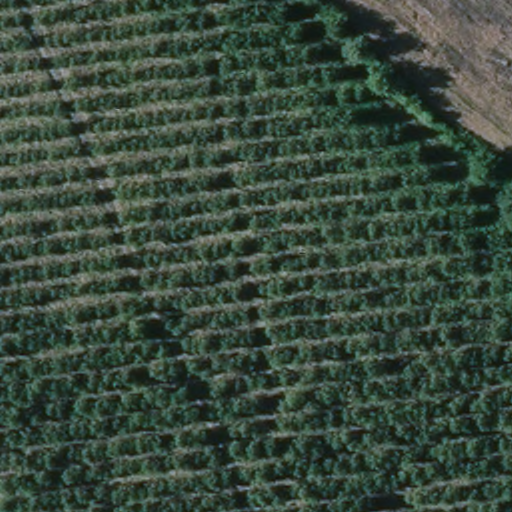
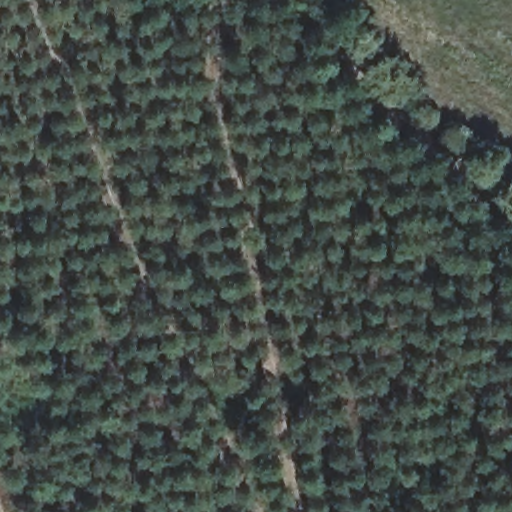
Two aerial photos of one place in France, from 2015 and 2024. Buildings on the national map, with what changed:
[]

